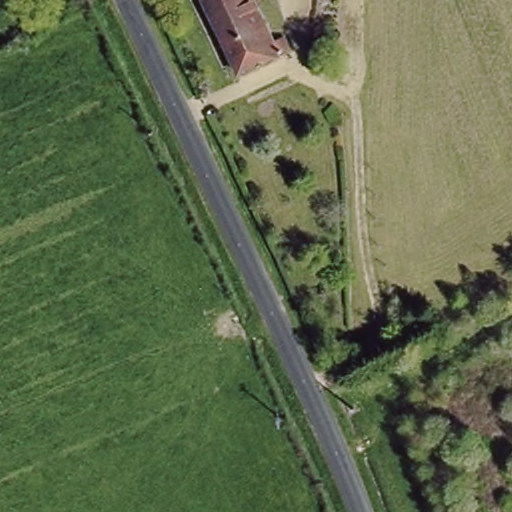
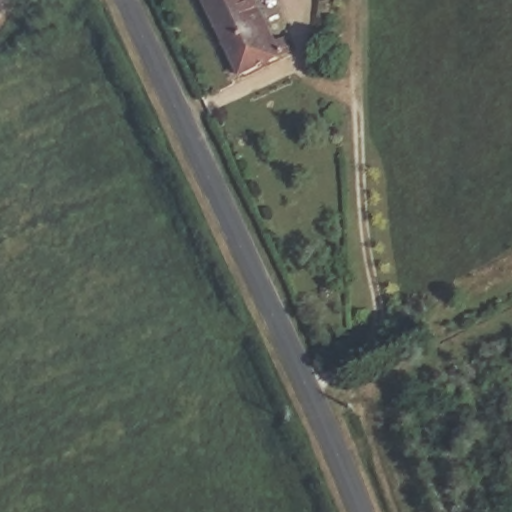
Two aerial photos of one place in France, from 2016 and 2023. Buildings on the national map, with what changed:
unchanged [(273,32),(281,49),(229,72),(197,0),(253,0),(267,34),(273,32)]

